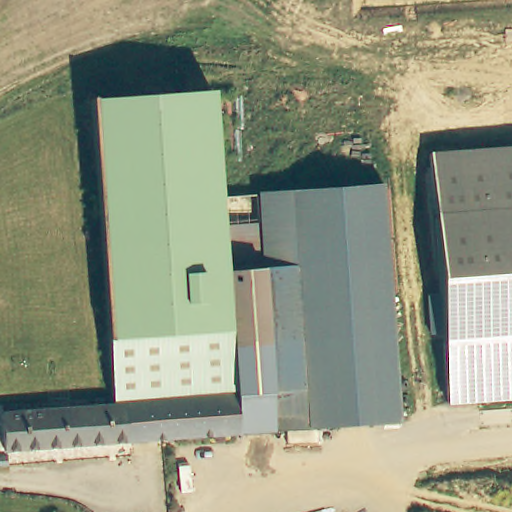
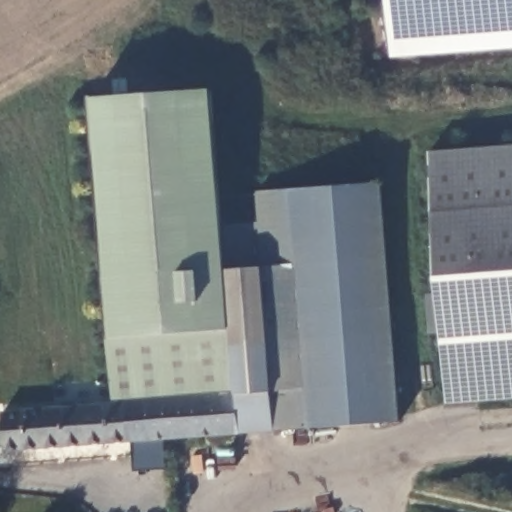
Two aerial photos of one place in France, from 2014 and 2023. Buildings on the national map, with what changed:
new [(389,0),(512,0),(512,49),(393,57),(389,0)]
unchanged [(237,389),(124,399),(123,389),(99,100),(218,90),(227,194),(238,193),(253,192),(255,263),(256,311),(265,362),(275,392),(309,431),(258,431),(240,431),(237,389)]
unchanged [(512,397),(444,401),(421,153),(512,147),(512,397)]
unchanged [(375,183),(394,427),(309,431),(275,392),(265,362),(256,311),(255,263),(253,192),(375,183)]
unchanged [(237,389),(240,431),(8,450),(4,412),(125,405),(124,399),(237,389)]

